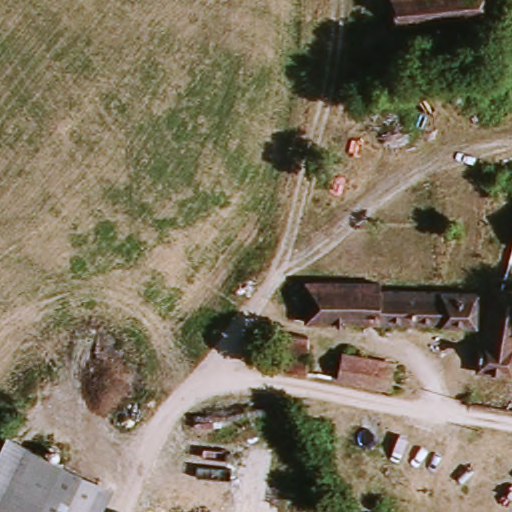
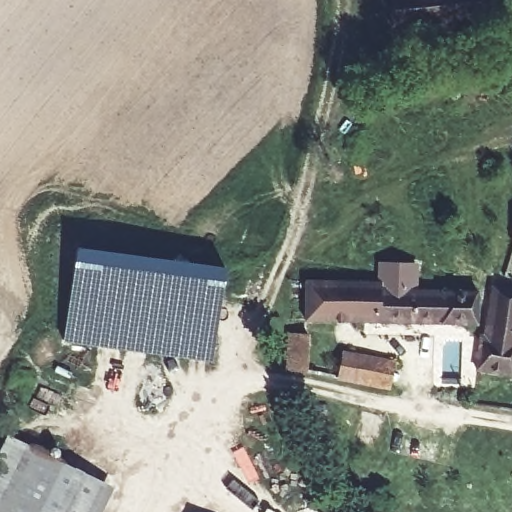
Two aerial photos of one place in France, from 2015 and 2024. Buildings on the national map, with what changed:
unchanged [(391,26),(389,8),(389,0),(492,0),(493,14),(391,26)]
unchanged [(510,243),(512,234),(512,244),(510,243)]
new [(212,361),(64,341),(74,249),(225,266),(212,361)]
unchanged [(387,284),(388,289),(476,293),(475,326),(316,322),(317,278),(387,284)]
unchanged [(477,371),(486,290),(512,293),(512,374),(477,371)]
unchanged [(345,380),(349,356),(384,362),(380,386),(345,380)]
unchanged [(0,443),(4,436),(52,460),(27,512),(0,512),(0,443)]
unchanged [(89,476),(72,512),(27,512),(52,460),(89,476)]
unchanged [(99,512),(72,512),(89,476),(111,487),(99,512)]

